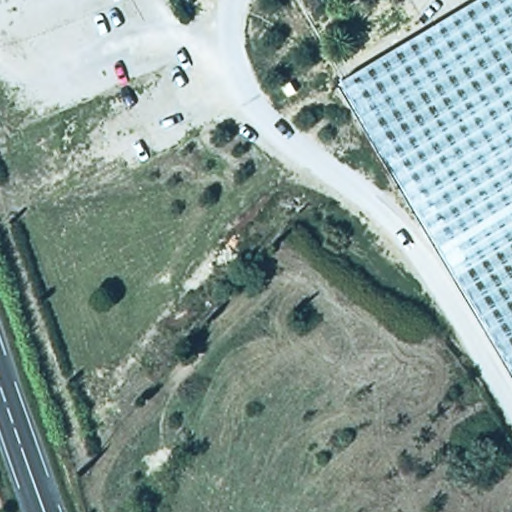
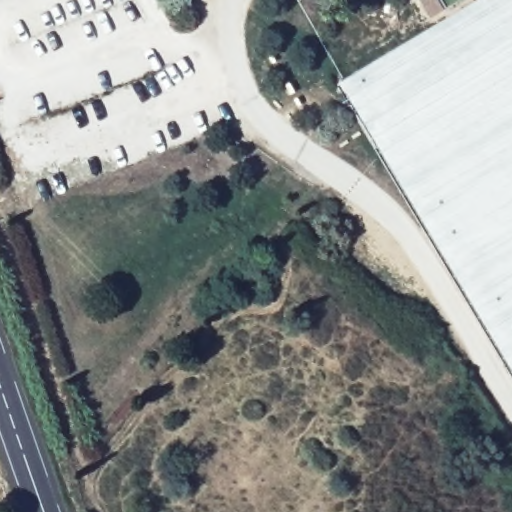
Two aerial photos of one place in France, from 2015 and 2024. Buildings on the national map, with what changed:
unchanged [(334,84),(476,0),(512,0),(512,382),(334,84)]

